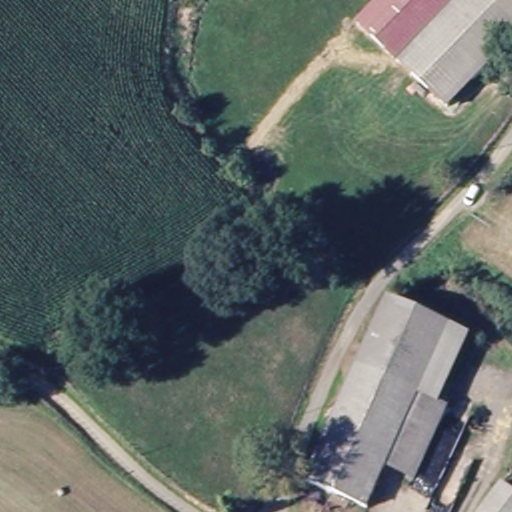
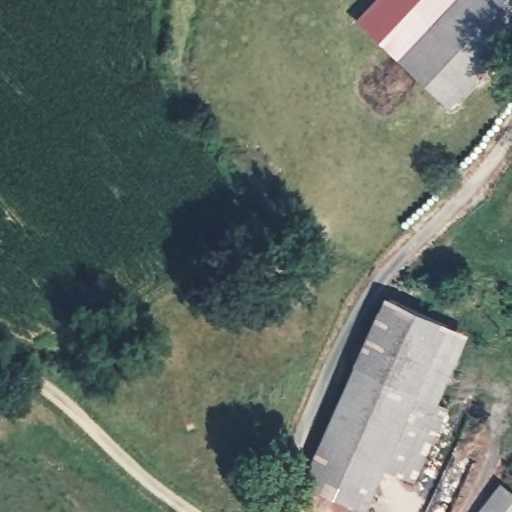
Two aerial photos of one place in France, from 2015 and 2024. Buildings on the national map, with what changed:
unchanged [(443,86),(437,93),(362,23),(384,0),(512,0),(512,15),(462,67),(471,76),(452,95),(443,86)]
unchanged [(360,369),(395,301),(455,331),(421,397),(360,369)]
unchanged [(377,482),(317,452),(360,369),(421,397),(388,461),(377,482)]
unchanged [(450,411),(419,477),(388,461),(421,397),(450,411)]
unchanged [(305,478),(317,452),(377,482),(365,506),(305,478)]
unchanged [(503,484),(512,491),(512,512),(478,512),(503,484)]

